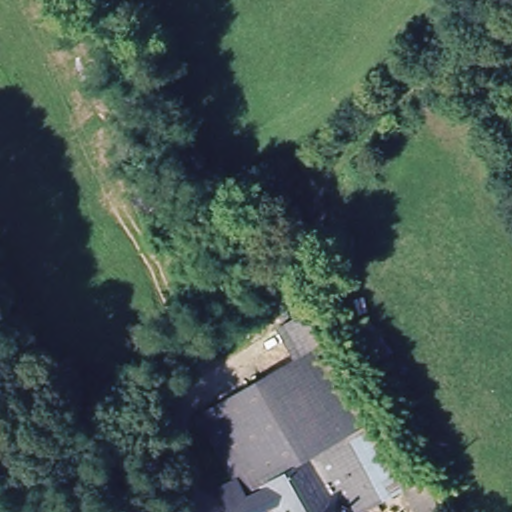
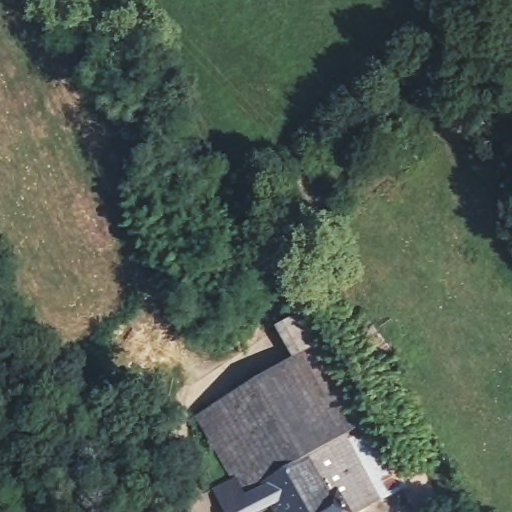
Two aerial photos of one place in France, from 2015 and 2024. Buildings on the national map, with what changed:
unchanged [(326,341),(416,486),(435,512),(413,512),(402,493),(372,512),(221,512),(204,483),(229,467),(203,416),(326,341)]

